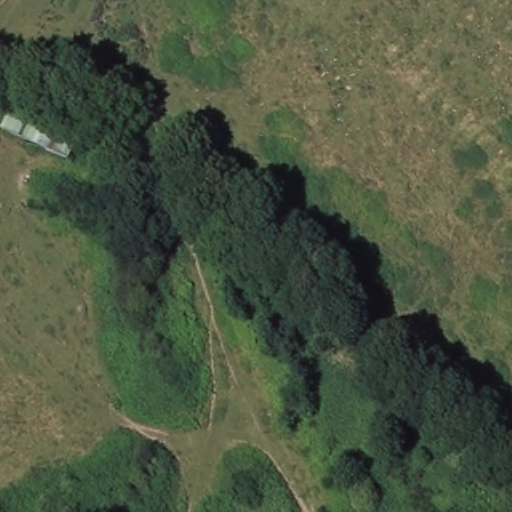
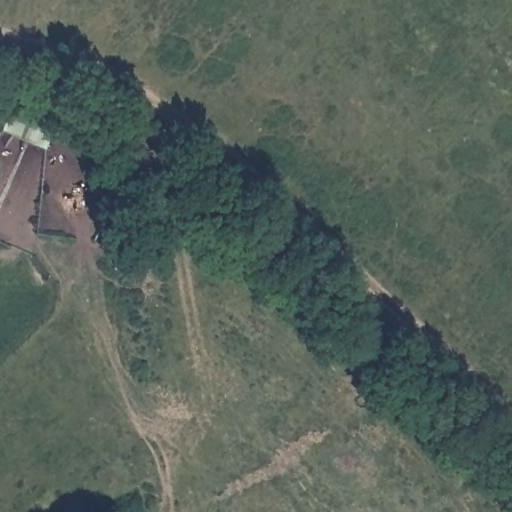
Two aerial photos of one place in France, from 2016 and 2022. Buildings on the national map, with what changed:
unchanged [(15,97),(85,127),(72,162),(2,131),(15,97)]

